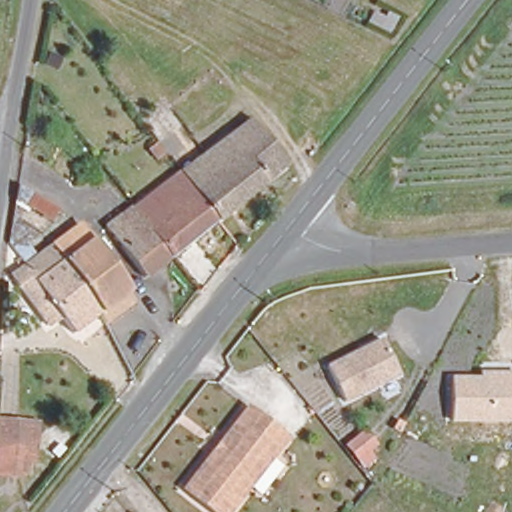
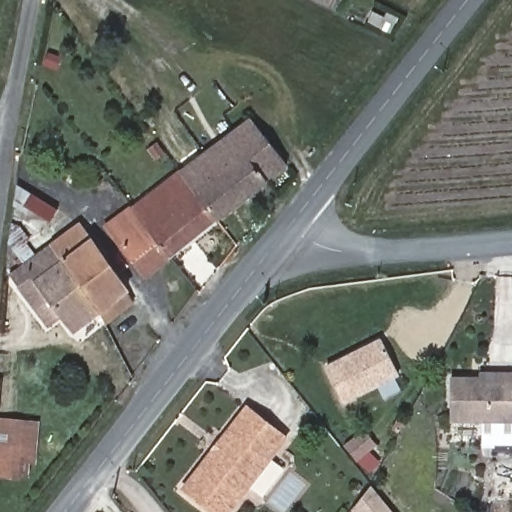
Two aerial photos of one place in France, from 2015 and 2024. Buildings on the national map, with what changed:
unchanged [(230,130),(249,116),(286,162),(264,177),(230,130)]
unchanged [(183,167),(230,130),(264,177),(217,213),(183,167)]
unchanged [(167,147),(156,156),(150,147),(161,139),(167,147)]
unchanged [(168,252),(133,207),(131,205),(181,165),(183,167),(217,213),(168,252)]
unchanged [(144,271),(109,225),(133,207),(168,252),(144,271)]
unchanged [(75,214),(121,277),(94,297),(48,234),(75,214)]
unchanged [(94,297),(54,327),(6,265),(48,234),(94,297)]
unchanged [(345,405),(324,367),(380,340),(400,377),(345,405)]
unchanged [(451,425),(451,377),(479,377),(479,372),(512,372),(512,424),(451,425)]
unchanged [(228,512),(215,512),(183,486),(248,406),(288,437),(228,512)]
unchanged [(0,477),(0,415),(27,417),(19,478),(0,477)]
unchanged [(370,452),(377,460),(364,471),(344,446),(365,428),(379,446),(370,452)]
new [(372,487),(392,512),(351,512),(372,487)]

